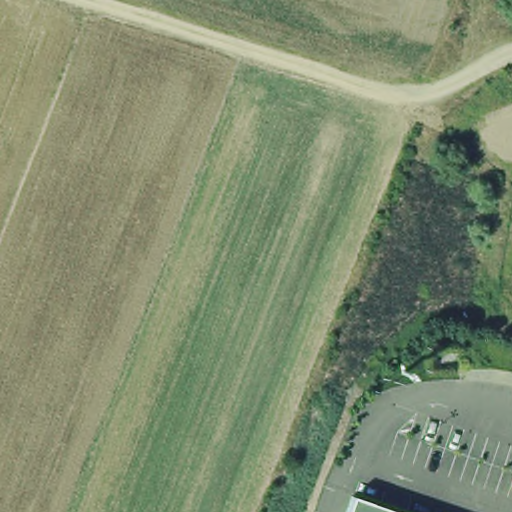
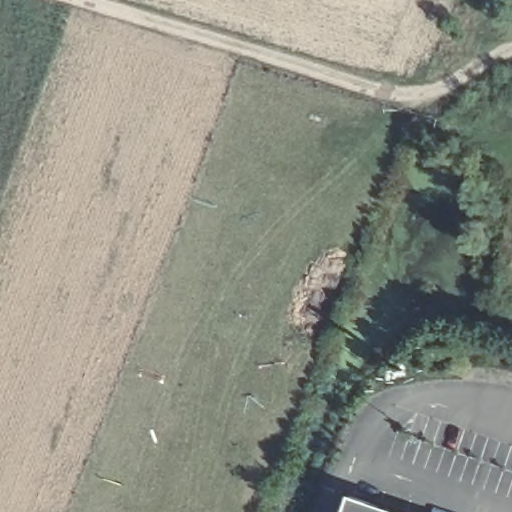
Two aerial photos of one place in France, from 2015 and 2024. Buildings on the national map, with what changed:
unchanged [(346,500),(380,512),(342,512),(346,500)]

